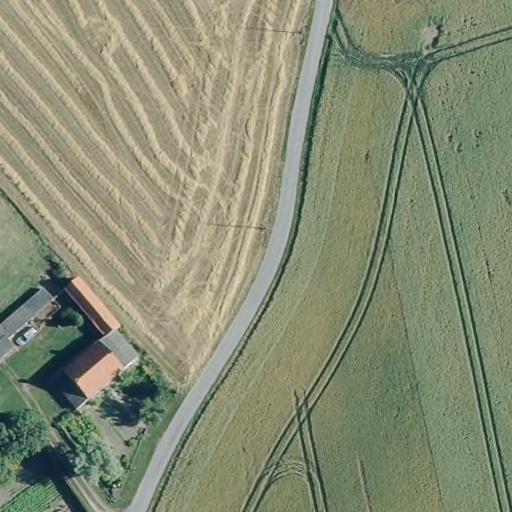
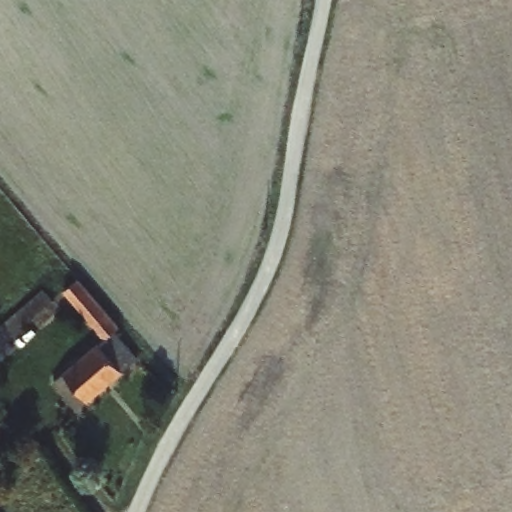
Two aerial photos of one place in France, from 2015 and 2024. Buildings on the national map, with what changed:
unchanged [(119,325),(114,330),(137,358),(77,412),(52,382),(104,339),(63,291),(78,277),(119,325)]
unchanged [(43,290),(53,300),(6,342),(13,349),(0,360),(0,325),(43,290)]

